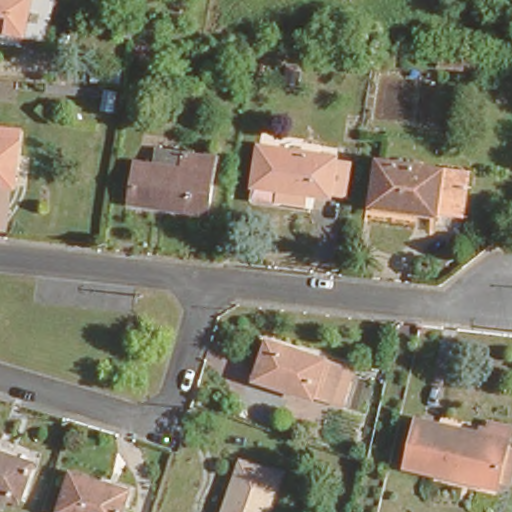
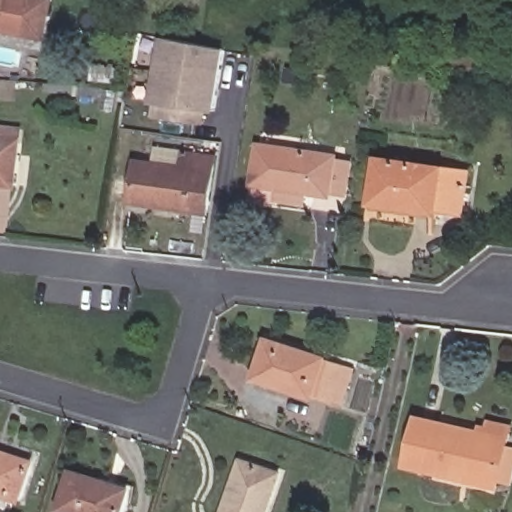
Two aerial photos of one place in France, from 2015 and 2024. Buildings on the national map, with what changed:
unchanged [(46,27),(27,24),(0,19),(0,0),(51,0),(46,27)]
new [(217,112),(206,110),(205,124),(159,117),(161,103),(152,102),(163,36),(226,49),(217,112)]
unchanged [(432,65),(434,52),(477,56),(476,69),(432,65)]
unchanged [(91,92),(90,106),(49,102),(49,89),(91,92)]
unchanged [(19,175),(0,173),(0,130),(24,133),(19,175)]
unchanged [(327,192),(251,183),(257,144),(333,153),(327,192)]
unchanged [(207,210),(128,200),(134,161),(177,168),(181,149),(214,153),(207,210)]
unchanged [(431,205),(368,195),(374,155),(462,170),(460,183),(456,209),(431,205)]
unchanged [(324,398),(249,373),(262,334),(338,359),(324,398)]
unchanged [(338,359),(361,367),(348,406),(324,398),(338,359)]
unchanged [(420,413),(478,426),(479,421),(494,424),(496,417),(512,422),(512,429),(511,434),(500,481),(409,459),(420,413)]
unchanged [(0,489),(0,446),(11,449),(32,456),(30,461),(18,495),(0,489)]
unchanged [(221,512),(241,449),(281,461),(265,512),(221,512)]
unchanged [(83,512),(55,503),(68,466),(126,483),(116,512),(83,512)]

